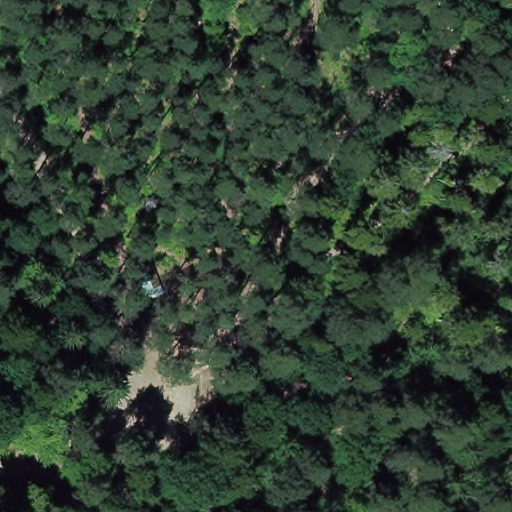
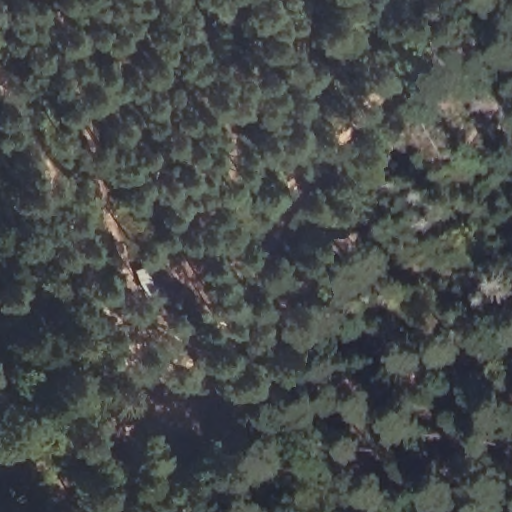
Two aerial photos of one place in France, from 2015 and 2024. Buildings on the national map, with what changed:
unchanged [(150,270),(160,295),(147,300),(137,275),(150,270)]

